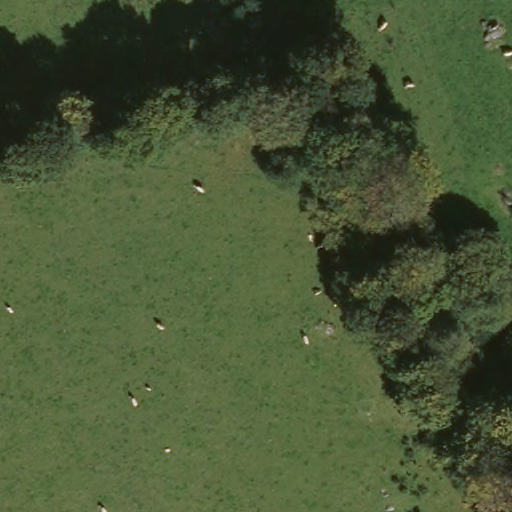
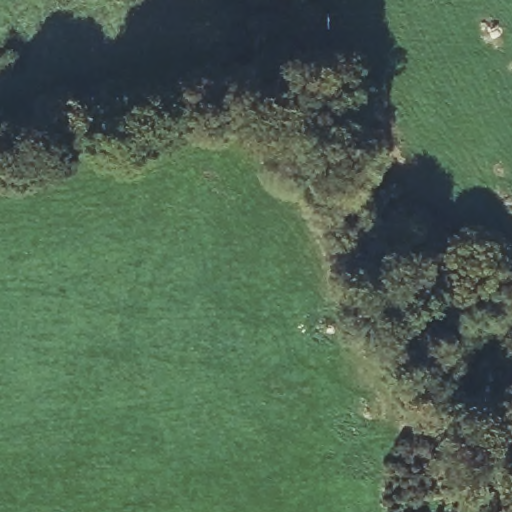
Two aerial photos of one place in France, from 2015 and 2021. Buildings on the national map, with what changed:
[]

